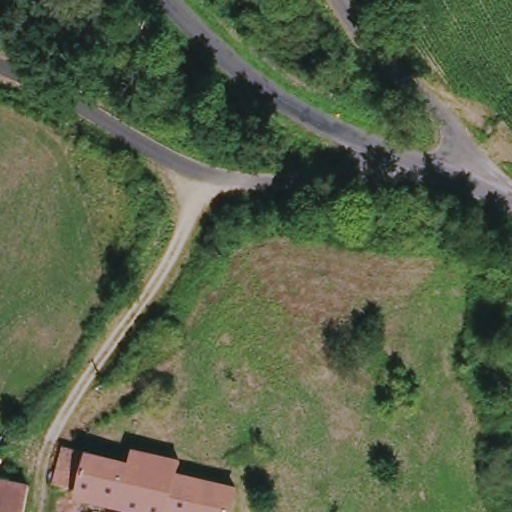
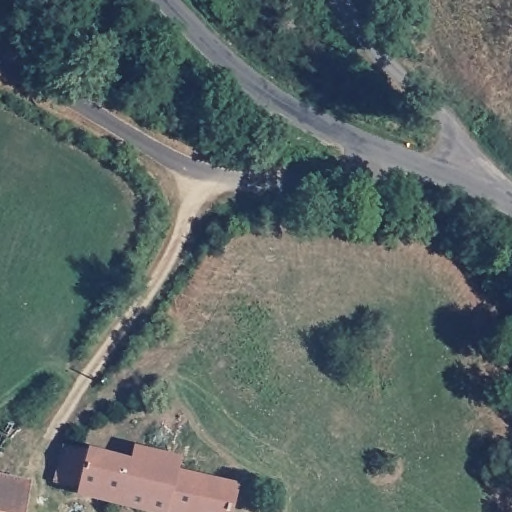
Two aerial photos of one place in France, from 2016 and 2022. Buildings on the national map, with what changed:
unchanged [(50,482),(43,480),(52,443),(116,459),(118,446),(169,457),(166,471),(157,512),(143,512),(65,494),(48,491),(50,482)]
unchanged [(240,512),(157,512),(166,471),(224,485),(246,490),(240,512)]
unchanged [(26,512),(0,512),(0,479),(31,486),(26,512)]

